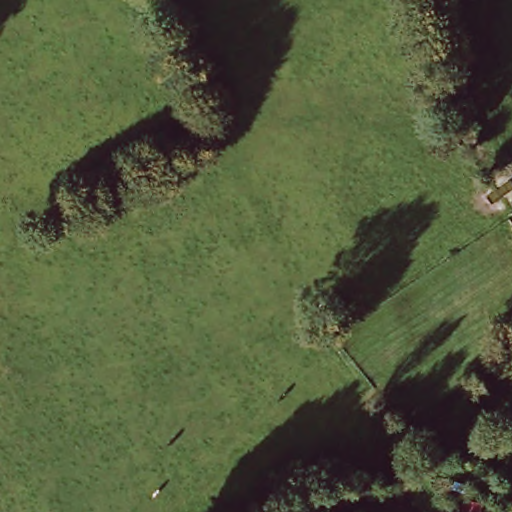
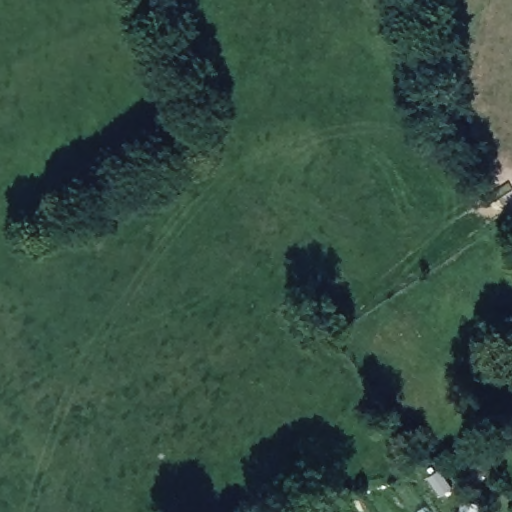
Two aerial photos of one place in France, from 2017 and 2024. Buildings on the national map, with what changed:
unchanged [(253,512),(253,511),(256,512),(253,512)]

